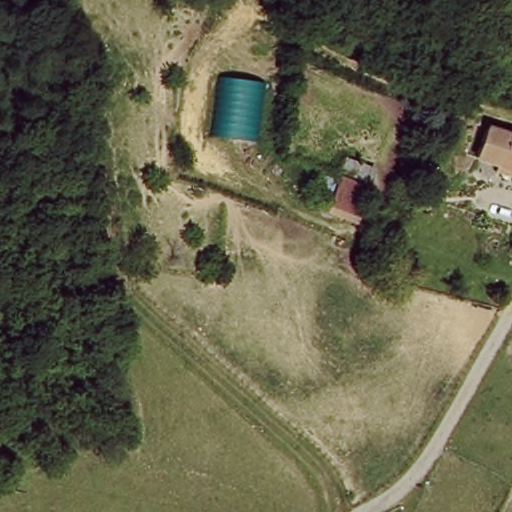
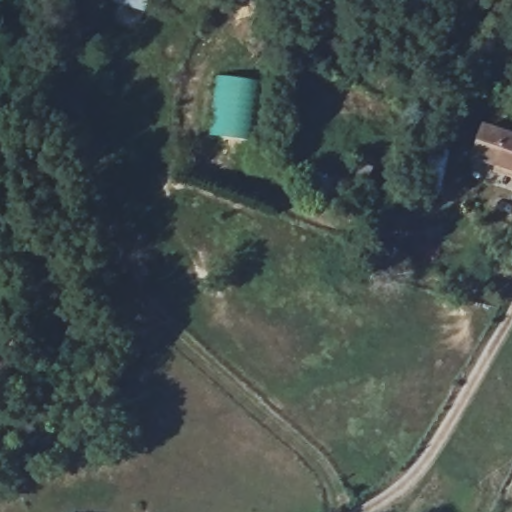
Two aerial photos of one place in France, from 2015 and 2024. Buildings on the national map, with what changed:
unchanged [(264,82),(256,143),(212,137),(220,77),(264,82)]
unchanged [(497,168),(499,163),(477,157),(484,129),(509,136),(512,137),(512,173),(497,168)]
unchanged [(374,177),(357,226),(328,216),(345,167),(374,177)]

